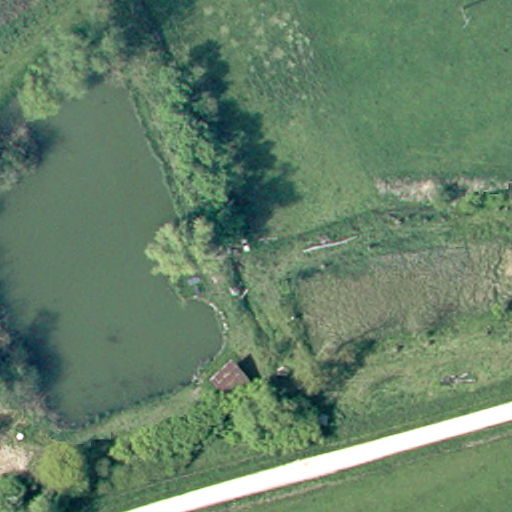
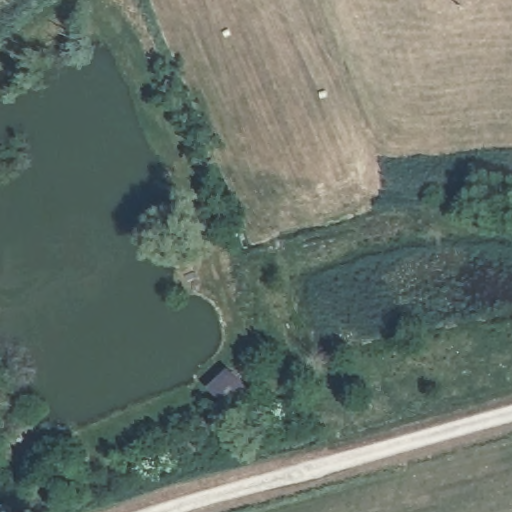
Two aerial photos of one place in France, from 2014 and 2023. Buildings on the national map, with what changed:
unchanged [(251,389),(230,409),(212,387),(235,363),(251,389)]

